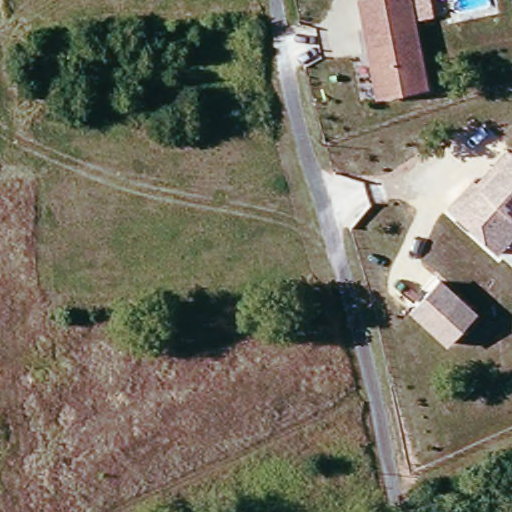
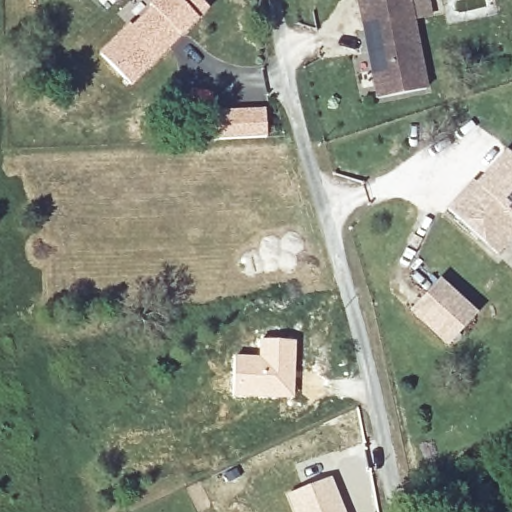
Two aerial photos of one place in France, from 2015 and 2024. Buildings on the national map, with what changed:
new [(127,25),(130,29),(151,10),(147,6),(154,0),(197,0),(205,8),(176,36),(172,31),(162,41),(167,46),(125,84),(96,54),(127,25)]
unchanged [(366,51),(368,50),(360,0),(405,0),(408,16),(422,87),(375,97),(366,51)]
new [(213,139),(212,110),(264,108),(265,137),(213,139)]
unchanged [(487,245),(450,211),(475,184),(478,186),(487,175),(508,153),(512,157),(512,243),(499,256),(487,245)]
unchanged [(407,307),(437,273),(478,310),(446,345),(407,307)]
new [(234,354),(257,355),(258,338),(296,339),(294,398),(231,397),(234,354)]
new [(346,512),(292,512),(284,494),(331,475),(346,512)]

